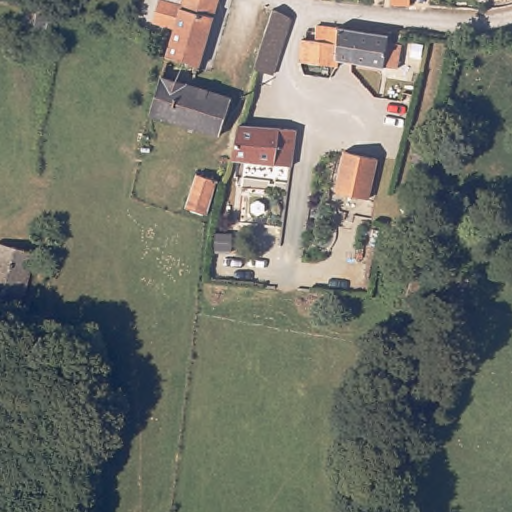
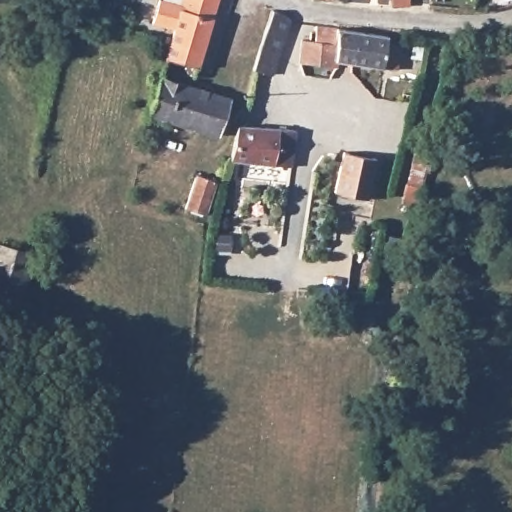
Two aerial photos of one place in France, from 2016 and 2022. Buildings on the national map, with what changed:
unchanged [(172,31),(151,25),(157,0),(179,6),(181,0),(219,0),(199,67),(165,56),(172,31)]
unchanged [(394,9),(393,0),(412,0),(412,9),(394,9)]
unchanged [(254,68),(271,10),(289,19),(270,73),(254,68)]
unchanged [(304,40),(337,44),(337,29),(387,37),(387,44),(406,49),(402,68),(340,60),(337,68),(322,64),(303,63),(304,40)]
unchanged [(147,114),(165,56),(199,67),(194,87),(230,99),(220,133),(151,114),(147,114)]
unchanged [(435,133),(422,129),(424,116),(438,118),(435,133)]
unchanged [(240,123),(280,129),(297,131),(292,168),(231,158),(232,155),(240,123)]
unchanged [(377,159),(368,199),(336,192),(344,151),(377,159)]
unchanged [(185,205),(194,173),(214,179),(206,211),(185,205)]
unchanged [(0,249),(1,248),(37,258),(21,314),(0,308),(0,249)]

